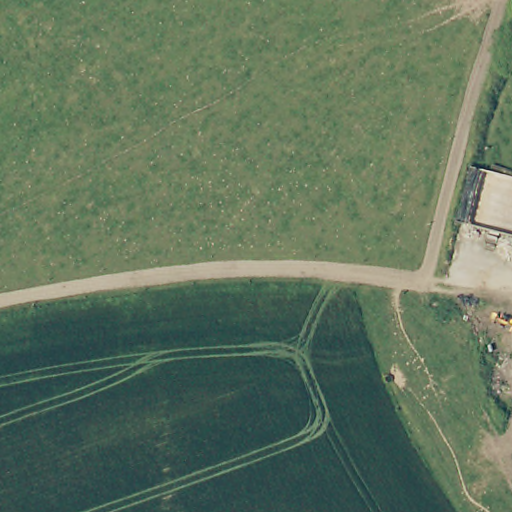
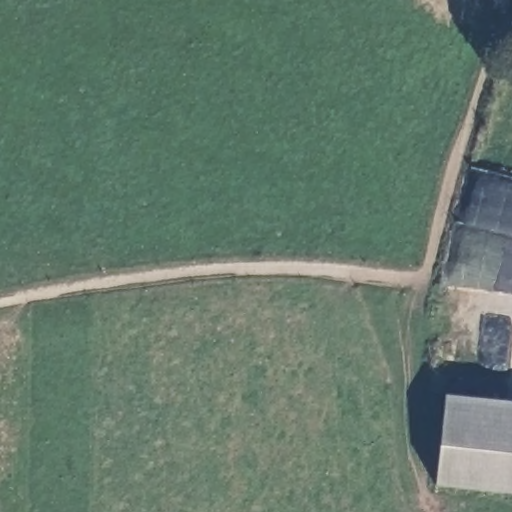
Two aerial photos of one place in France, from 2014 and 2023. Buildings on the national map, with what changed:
new [(446,397),(512,404),(512,496),(437,487),(446,397)]

